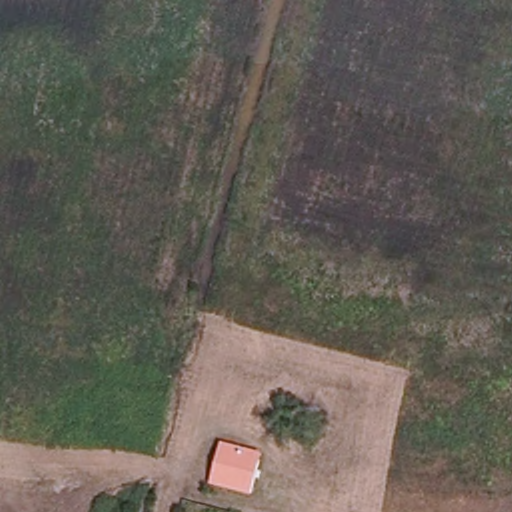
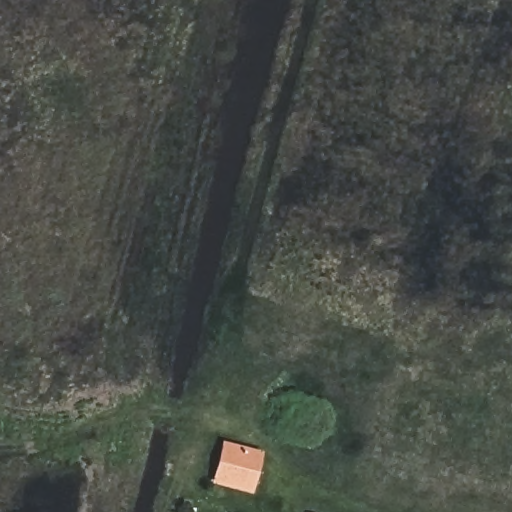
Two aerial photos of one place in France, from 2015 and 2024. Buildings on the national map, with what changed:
unchanged [(211,481),(221,448),(247,455),(238,488),(211,481)]

